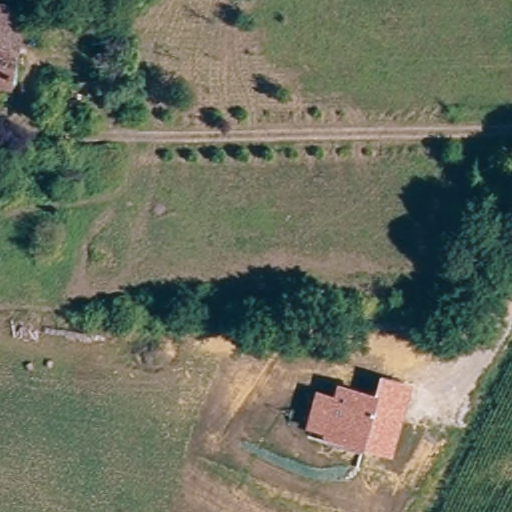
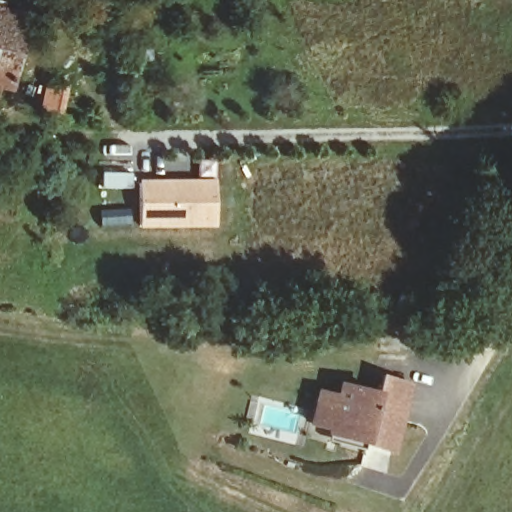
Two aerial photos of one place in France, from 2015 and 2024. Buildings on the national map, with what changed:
unchanged [(8,85),(0,85),(0,3),(20,6),(8,85)]
unchanged [(65,78),(60,110),(43,108),(49,76),(65,78)]
new [(216,180),(217,229),(143,230),(141,181),(216,180)]
unchanged [(395,457),(324,438),(325,433),(308,428),(317,391),(336,395),(339,384),(376,395),(382,376),(413,385),(395,457)]

